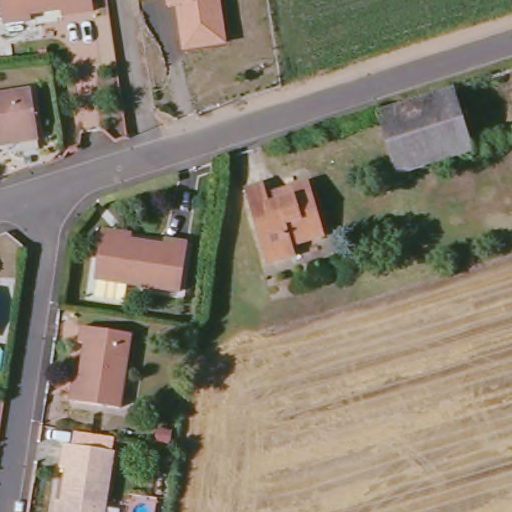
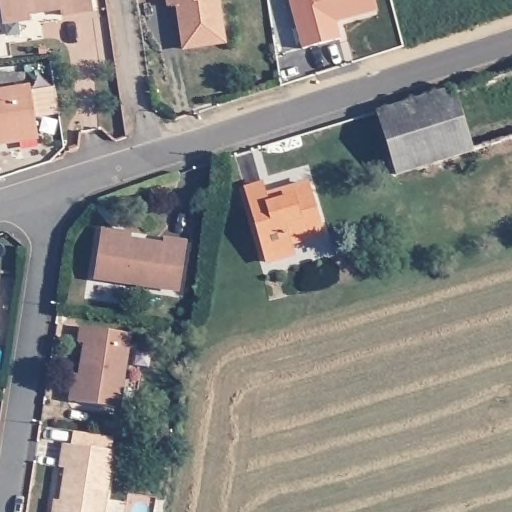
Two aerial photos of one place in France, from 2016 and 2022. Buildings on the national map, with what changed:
unchanged [(0,0),(88,0),(90,15),(57,18),(57,12),(27,15),(27,20),(0,22),(0,0)]
unchanged [(140,1),(140,0),(147,0),(140,1)]
unchanged [(230,47),(185,55),(177,8),(169,9),(168,0),(223,0),(230,47)]
new [(379,12),(337,24),(341,40),(304,49),(290,0),(376,0),(379,12)]
unchanged [(370,112),(450,87),(470,148),(391,172),(370,112)]
unchanged [(29,142),(0,145),(0,100),(24,97),(29,142)]
unchanged [(262,187),(267,196),(305,184),(320,234),(289,244),(292,257),(267,265),(243,194),(262,187)]
unchanged [(95,227),(127,230),(127,239),(157,244),(160,234),(185,242),(175,292),(87,281),(95,227)]
unchanged [(122,336),(112,410),(70,401),(79,344),(74,342),(77,329),(122,336)]
unchanged [(97,512),(53,512),(59,470),(52,468),(56,447),(105,452),(97,512)]

